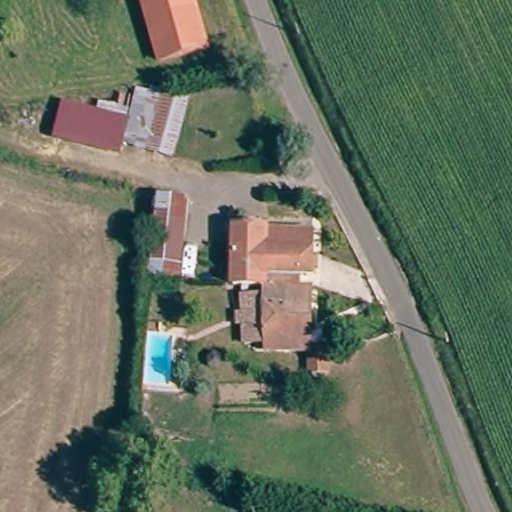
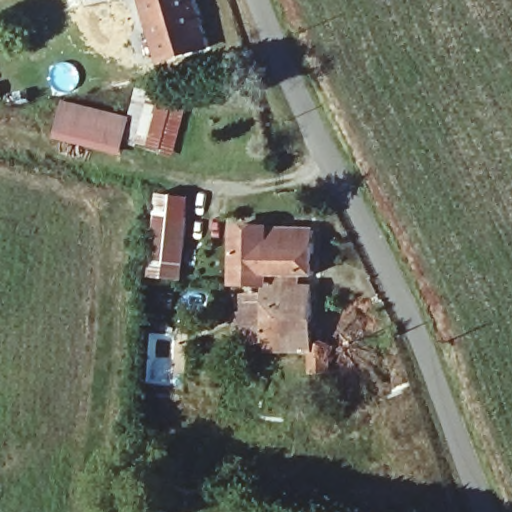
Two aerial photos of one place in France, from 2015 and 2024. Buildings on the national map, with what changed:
unchanged [(160,63),(144,0),(194,0),(209,48),(160,63)]
unchanged [(174,155),(126,141),(122,154),(55,135),(62,99),(129,115),(136,85),(153,90),(155,85),(192,96),(174,155)]
unchanged [(190,195),(179,274),(146,268),(161,191),(190,195)]
unchanged [(328,225),(325,272),(300,270),(298,280),(285,278),(245,275),(250,219),(283,221),(328,225)]
unchanged [(278,344),(283,293),(284,282),(325,286),(321,354),(278,350),(278,344)]
unchanged [(258,340),(262,292),(283,293),(278,344),(258,340)]
unchanged [(380,325),(376,311),(399,302),(405,316),(380,325)]
unchanged [(320,375),(321,354),(340,355),(337,376),(320,375)]

